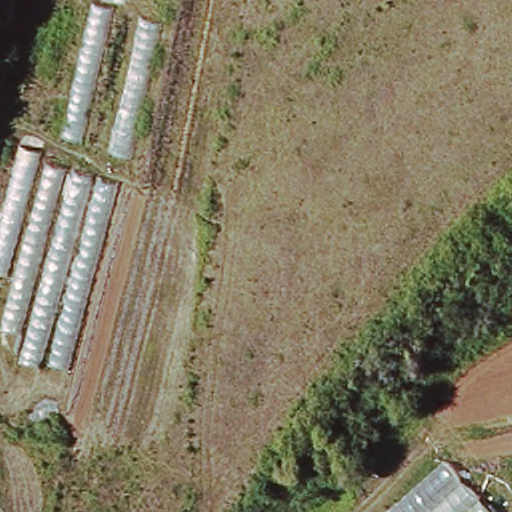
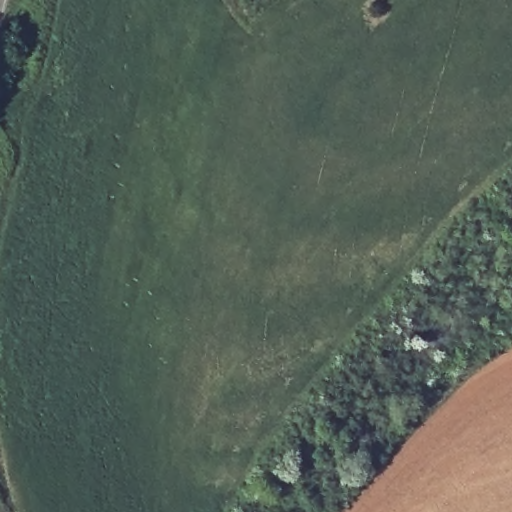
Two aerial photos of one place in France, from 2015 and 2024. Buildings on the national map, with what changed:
demolished [(89,0),(89,1),(110,7),(112,0),(141,0),(140,13),(162,20),(134,157),(59,136),(72,78),(43,72),(60,0),(89,0)]
demolished [(21,143),(120,169),(72,372),(23,360),(25,346),(0,342),(0,327),(5,300),(0,298),(0,221),(21,143)]
demolished [(443,462),(478,500),(465,512),(387,512),(443,462)]

